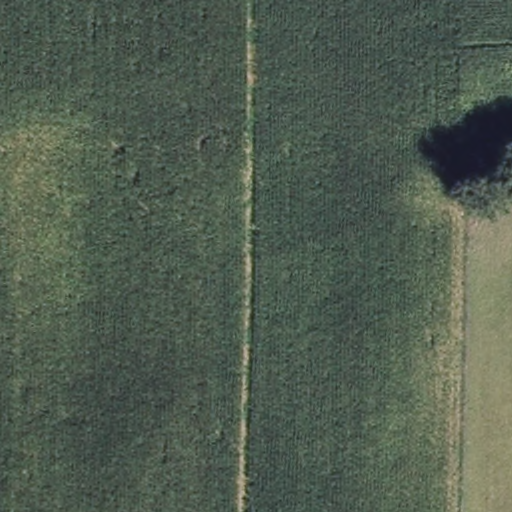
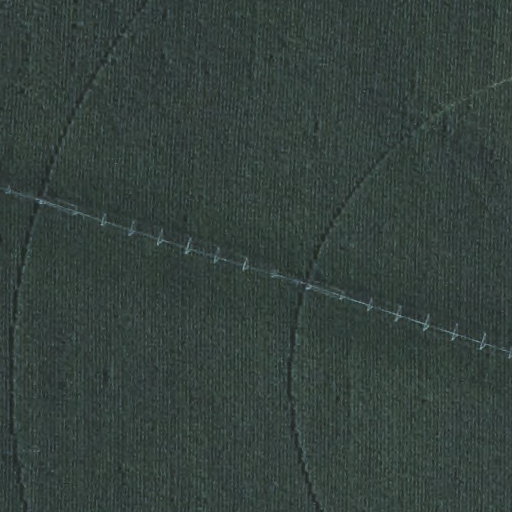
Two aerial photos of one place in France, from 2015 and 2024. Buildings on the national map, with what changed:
[]

